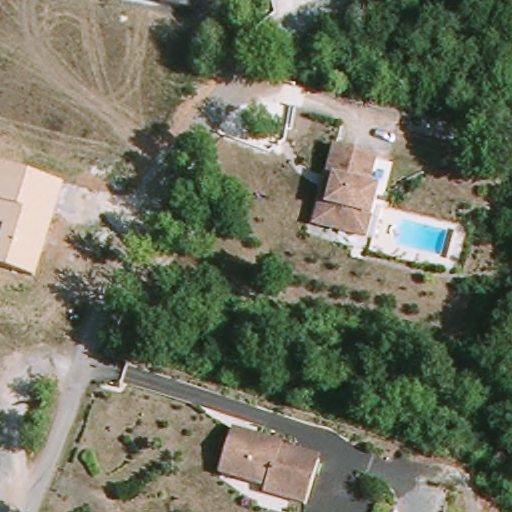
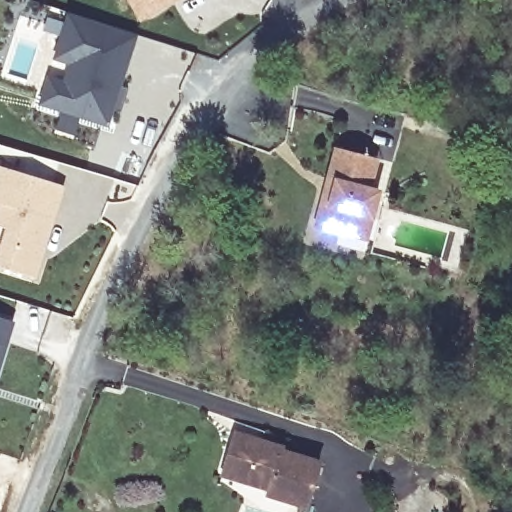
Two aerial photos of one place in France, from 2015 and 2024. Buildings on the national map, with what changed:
new [(174,0),(141,20),(129,0),(174,0)]
new [(119,114),(111,111),(106,126),(39,105),(48,79),(73,87),(79,67),(54,60),(68,15),(89,20),(135,35),(129,55),(118,88),(127,90),(119,114)]
unchanged [(358,232),(326,224),(332,201),(339,177),(348,146),(389,157),(380,187),(390,190),(383,216),(377,237),(358,232)]
unchanged [(0,267),(0,242),(4,227),(0,226),(0,167),(62,187),(36,277),(0,267)]
unchanged [(0,318),(13,322),(0,372),(0,318)]
unchanged [(229,466),(238,439),(285,454),(284,457),(322,469),(309,512),(300,512),(269,502),(271,497),(250,490),(224,482),(229,466)]

